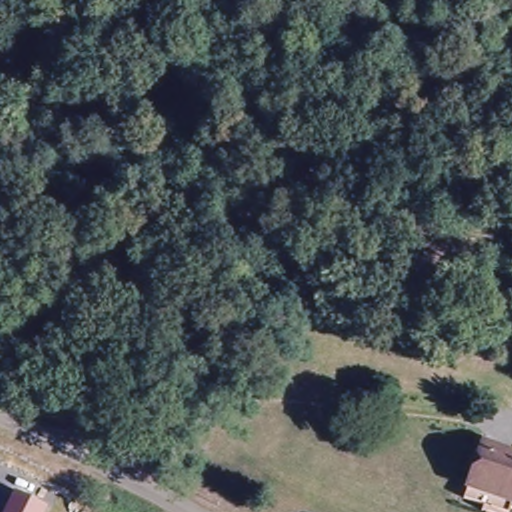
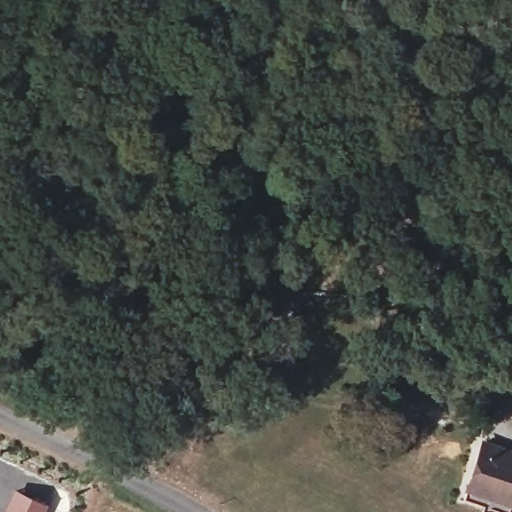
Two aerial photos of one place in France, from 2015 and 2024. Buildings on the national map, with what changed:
unchanged [(460,503),(464,489),(480,444),(512,455),(512,504),(506,502),(503,512),(488,512),(460,503)]
unchanged [(49,504),(45,512),(3,512),(14,489),(49,504)]

